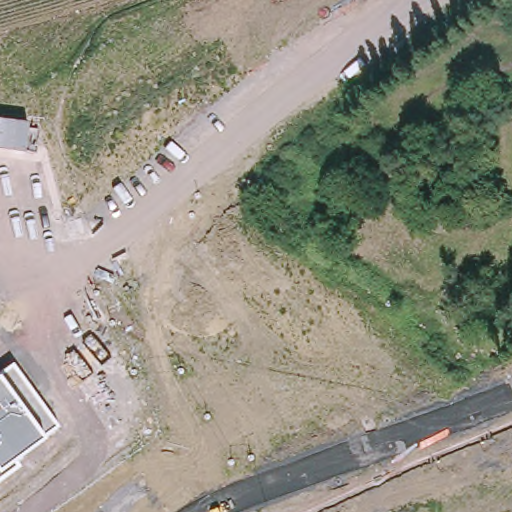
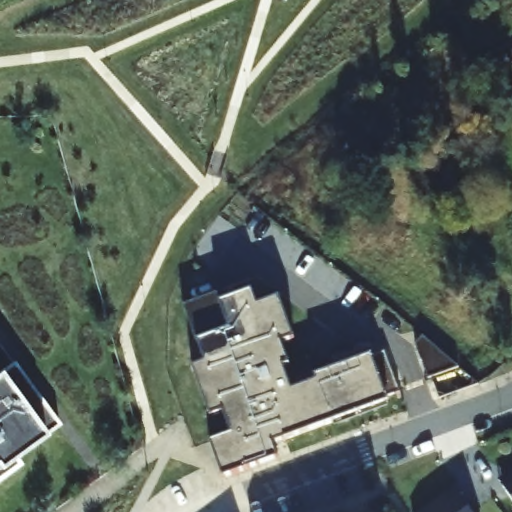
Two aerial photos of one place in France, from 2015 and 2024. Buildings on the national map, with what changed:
new [(210,441),(233,432),(224,412),(210,417),(192,367),(206,362),(184,307),(210,297),(213,307),(254,291),(258,306),(279,298),(293,339),(281,343),(289,365),(284,367),(293,388),(328,377),(326,373),(384,353),(399,392),(384,397),(386,402),(274,442),(279,456),(221,477),(210,441)]
new [(416,344),(423,337),(459,367),(428,378),(416,344)]
unchanged [(59,426),(44,437),(14,458),(20,466),(0,480),(0,372),(13,363),(59,426)]
new [(509,480),(512,479),(512,484),(509,480)]
new [(484,512),(432,512),(465,486),(484,512)]

